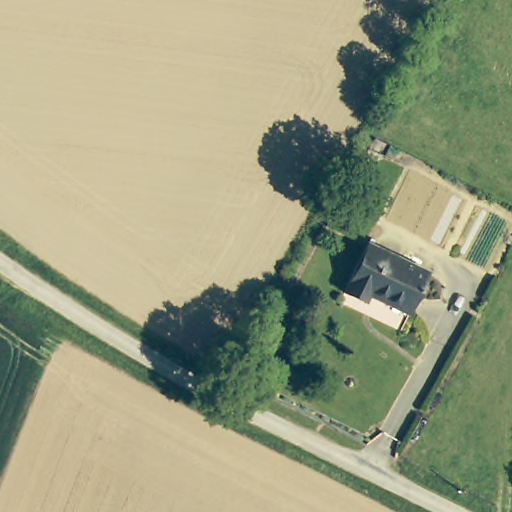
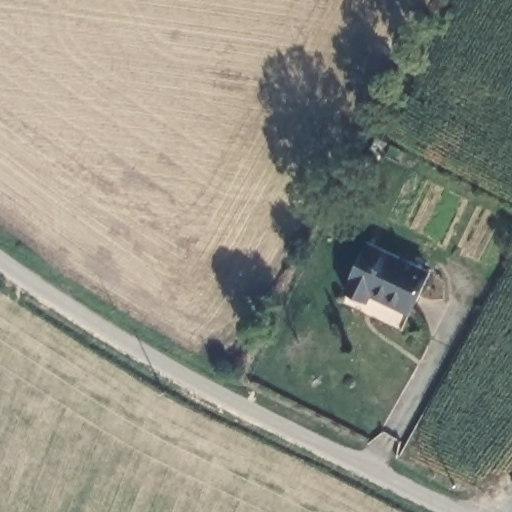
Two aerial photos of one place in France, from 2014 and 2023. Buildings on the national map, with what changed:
unchanged [(427,273),(410,311),(370,293),(367,299),(345,289),(367,246),(427,273)]

